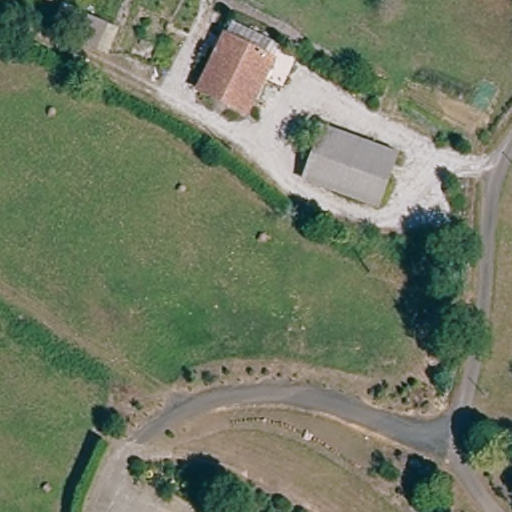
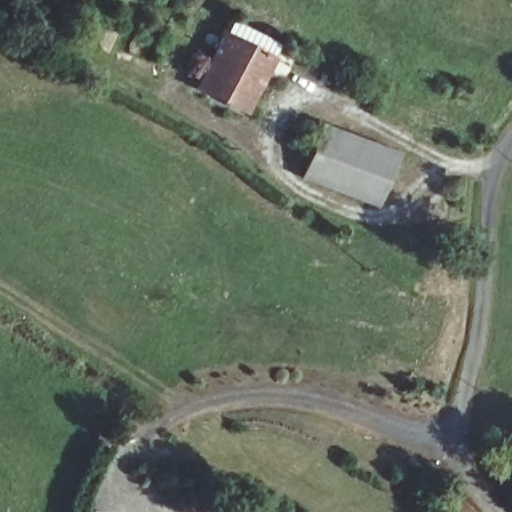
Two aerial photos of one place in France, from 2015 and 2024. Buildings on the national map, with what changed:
unchanged [(24,3),(17,0),(25,0),(24,3)]
unchanged [(49,7),(35,0),(53,0),(49,7)]
unchanged [(104,50),(73,36),(84,10),(115,26),(104,50)]
unchanged [(201,96),(228,37),(235,21),(275,40),(268,57),(280,62),(253,120),(201,96)]
unchanged [(321,123),(366,137),(372,127),(403,139),(404,150),(404,152),(387,187),(371,218),(333,202),(289,186),(321,123)]

